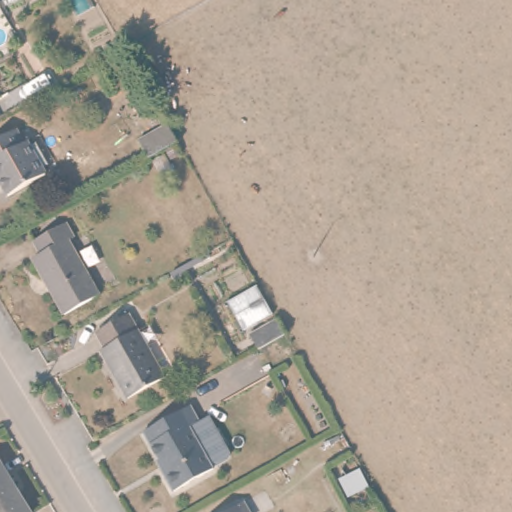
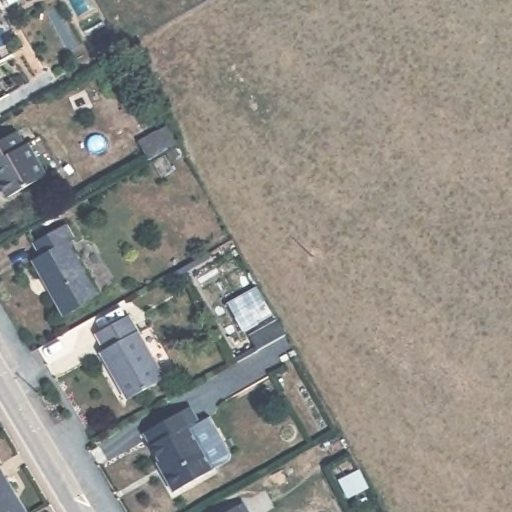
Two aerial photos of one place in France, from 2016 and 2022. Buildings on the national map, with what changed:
unchanged [(164,131),(174,151),(144,168),(133,149),(164,131)]
unchanged [(23,150),(27,147),(44,180),(6,201),(0,189),(0,144),(14,136),(23,150)]
unchanged [(96,303),(64,323),(32,267),(39,261),(32,247),(63,230),(69,242),(64,245),(96,303)]
unchanged [(273,315),(242,333),(225,302),(255,285),(273,315)]
unchanged [(168,382),(125,405),(99,362),(101,356),(93,341),(133,319),(168,382)]
unchanged [(275,321),(285,337),(261,351),(251,334),(275,321)]
unchanged [(184,408),(194,426),(185,430),(207,470),(169,491),(138,433),(184,408)]
unchanged [(31,512),(0,512),(0,469),(5,466),(31,512)]
unchanged [(243,500),(250,512),(223,512),(243,500)]

